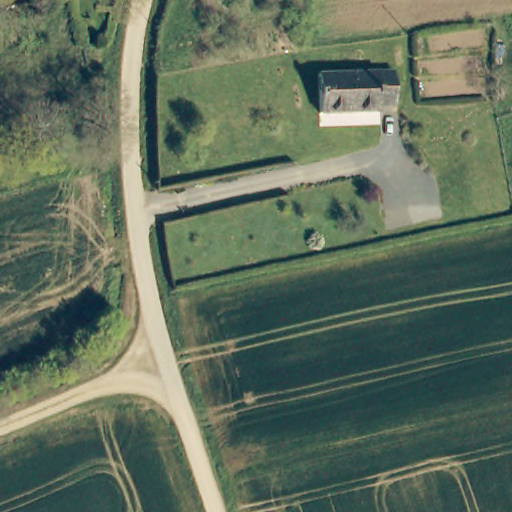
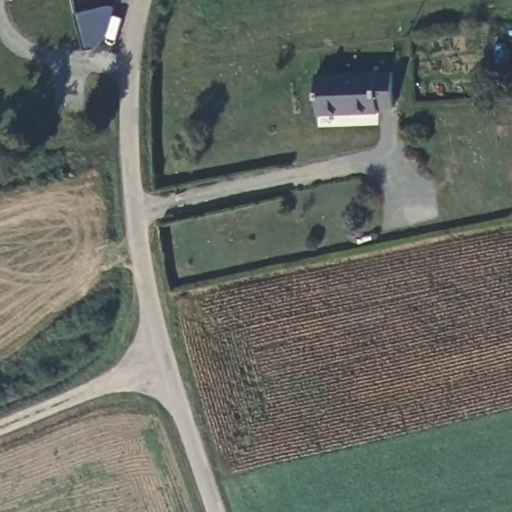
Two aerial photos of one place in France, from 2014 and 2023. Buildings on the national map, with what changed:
new [(109,33),(97,44),(86,47),(80,11),(110,4),(117,6),(109,33)]
unchanged [(318,72),(393,71),(393,94),(392,106),(379,107),(378,113),(317,111),(318,72)]
unchanged [(26,115),(61,106),(67,128),(31,137),(26,115)]

